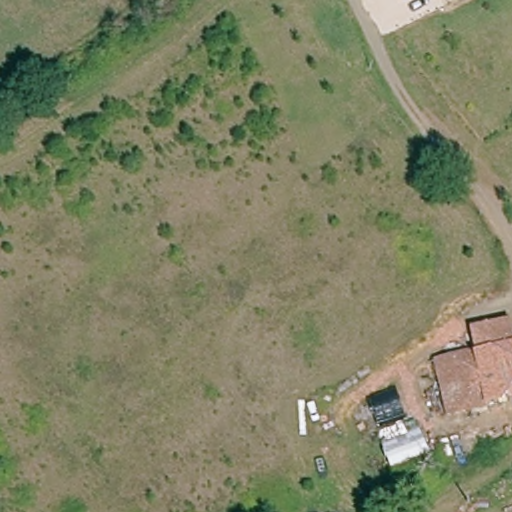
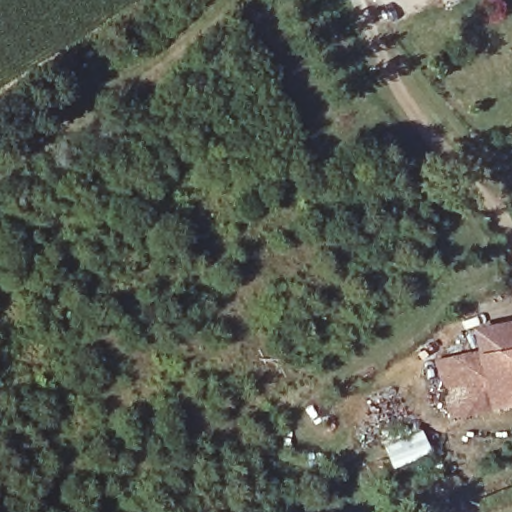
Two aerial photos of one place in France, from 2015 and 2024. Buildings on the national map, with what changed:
unchanged [(512,326),(512,405),(452,419),(439,367),(480,357),(477,334),(512,326)]

